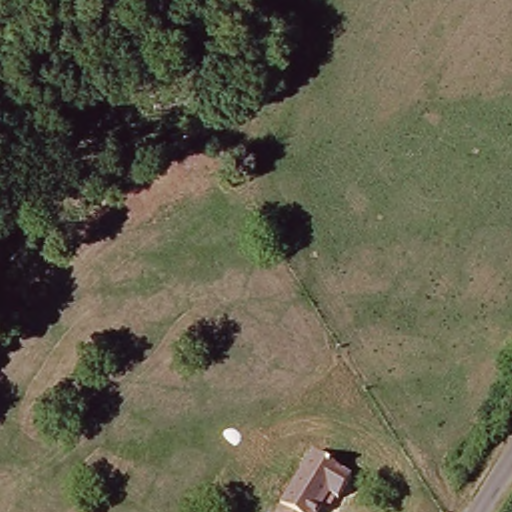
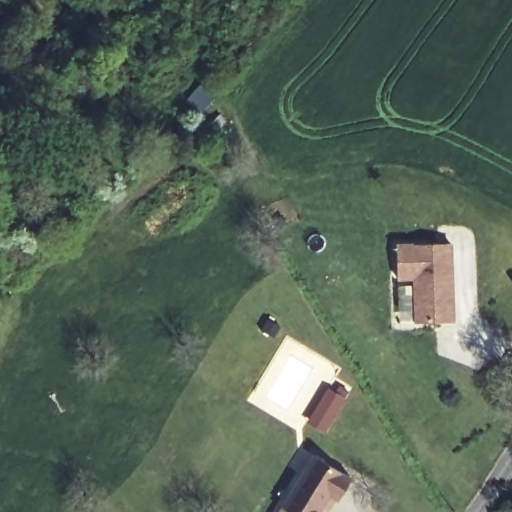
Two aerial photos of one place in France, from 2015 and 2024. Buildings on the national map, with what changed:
demolished [(166,157),(176,169),(150,194),(139,183),(166,157)]
new [(397,282),(395,244),(452,245),(454,321),(414,323),(412,281),(397,282)]
unchanged [(11,318),(0,310),(0,308),(18,281),(31,290),(11,318)]
unchanged [(352,477),(333,510),(325,504),(320,512),(276,512),(312,454),(352,477)]

